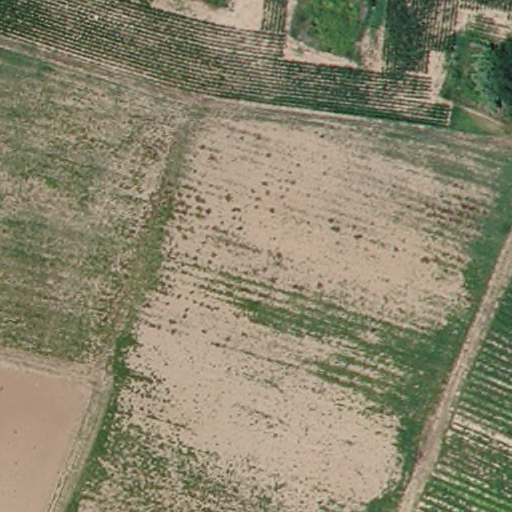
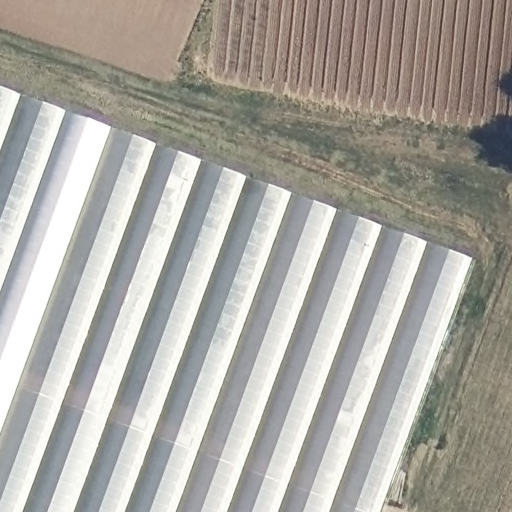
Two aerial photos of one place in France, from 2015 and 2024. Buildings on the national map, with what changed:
new [(0,512),(0,86),(473,258),(383,512),(0,512)]

